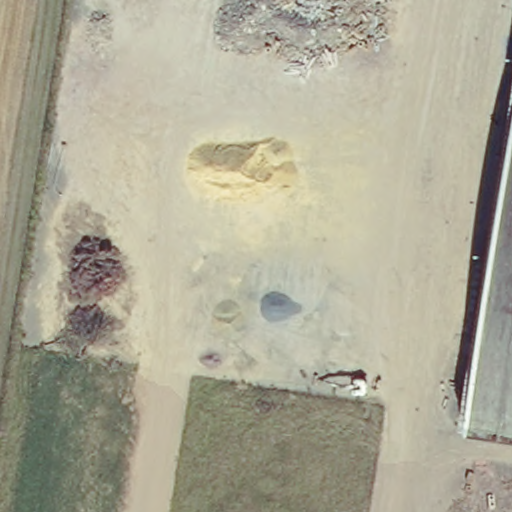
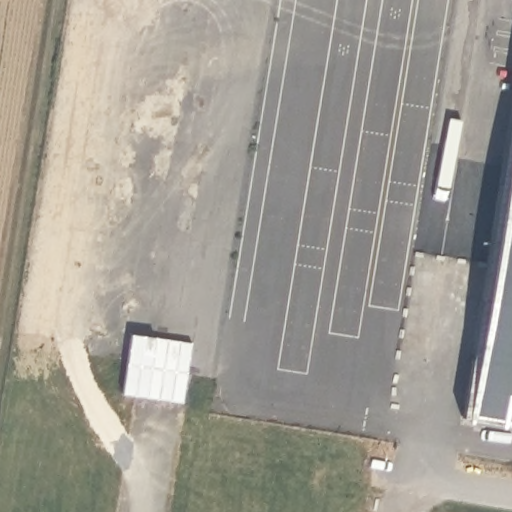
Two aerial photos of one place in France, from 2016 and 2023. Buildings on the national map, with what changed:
unchanged [(512,137),(512,419),(465,411),(512,137)]
new [(192,342),(185,406),(122,396),(129,336),(192,342)]

